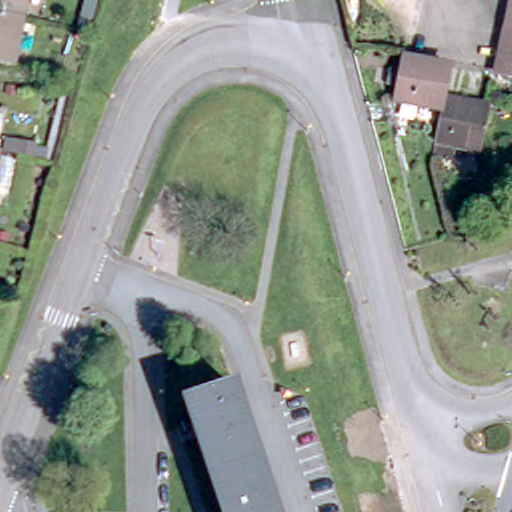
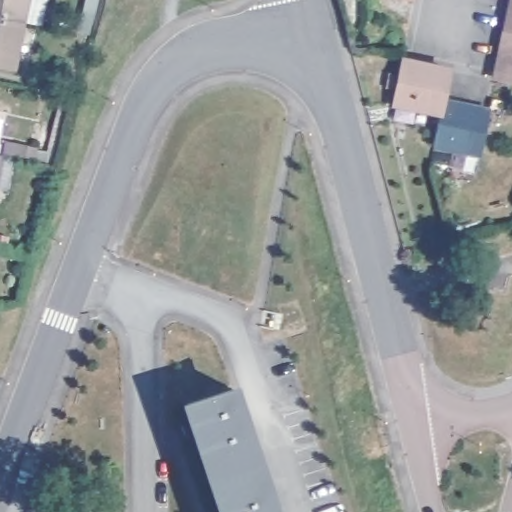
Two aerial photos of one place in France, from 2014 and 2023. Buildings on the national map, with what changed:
unchanged [(0,0),(26,0),(22,20),(0,16),(0,0)]
unchanged [(506,27),(511,0),(512,0),(512,28),(506,27)]
unchanged [(14,67),(0,65),(0,16),(22,20),(14,67)]
unchanged [(497,73),(500,61),(506,27),(512,28),(512,75),(497,73)]
unchanged [(403,52),(449,61),(444,91),(441,104),(395,94),(403,52)]
unchanged [(441,104),(444,91),(490,100),(481,144),(435,136),(441,104)]
unchanged [(29,156),(0,150),(0,145),(2,136),(32,142),(29,156)]
unchanged [(0,169),(0,154),(4,155),(0,169)]
unchanged [(192,413),(190,406),(234,391),(275,512),(225,512),(218,491),(192,413)]

